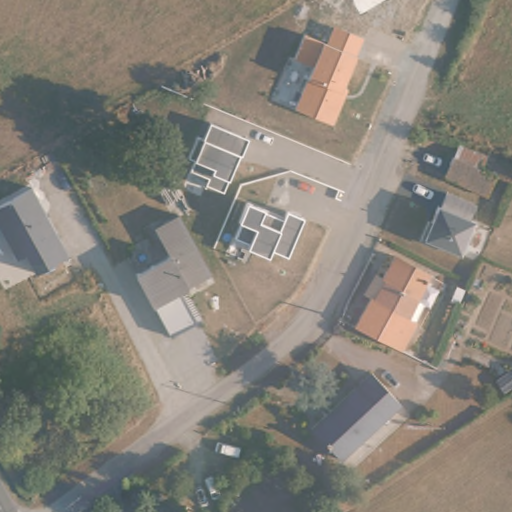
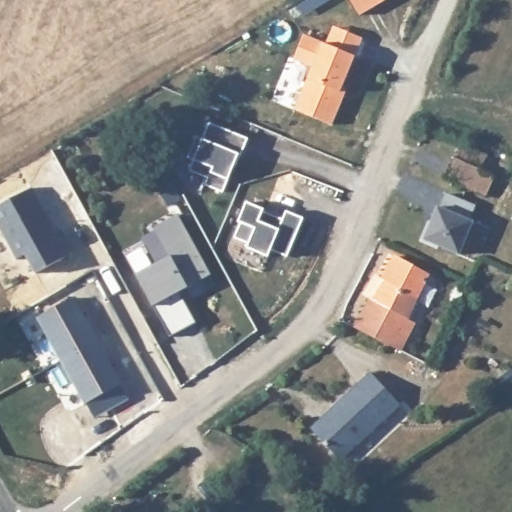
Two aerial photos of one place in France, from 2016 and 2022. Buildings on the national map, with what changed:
unchanged [(387,0),(361,15),(352,0),(387,0)]
unchanged [(355,56),(341,87),(349,90),(334,125),(294,107),(309,82),(304,80),(311,65),(292,60),(304,34),(321,40),(330,43),(333,24),(364,35),(355,56)]
unchanged [(238,154),(227,178),(224,191),(207,185),(209,177),(190,170),(195,159),(203,139),(209,123),(246,137),(238,154)]
unchanged [(445,174),(455,153),(459,142),(503,161),(497,174),(496,173),(488,194),(445,174)]
unchanged [(25,254),(16,258),(0,228),(0,203),(29,187),(66,254),(36,273),(25,254)]
unchanged [(472,220),(457,255),(421,240),(436,206),(442,208),(447,192),(475,204),(472,220)]
unchanged [(285,209),(305,216),(289,252),(271,247),(268,255),(246,247),(249,241),(235,236),(243,222),(236,220),(245,201),(263,208),(282,219),(285,209)]
unchanged [(190,285),(180,291),(196,321),(168,335),(154,305),(136,274),(171,256),(153,227),(178,215),(210,273),(190,285)]
unchanged [(400,251),(434,269),(411,316),(420,321),(404,348),(362,322),(377,293),(380,295),(390,277),(387,275),(400,251)]
new [(38,316),(74,296),(123,383),(86,404),(38,316)]
unchanged [(374,371),(402,402),(341,455),(314,425),(374,371)]

